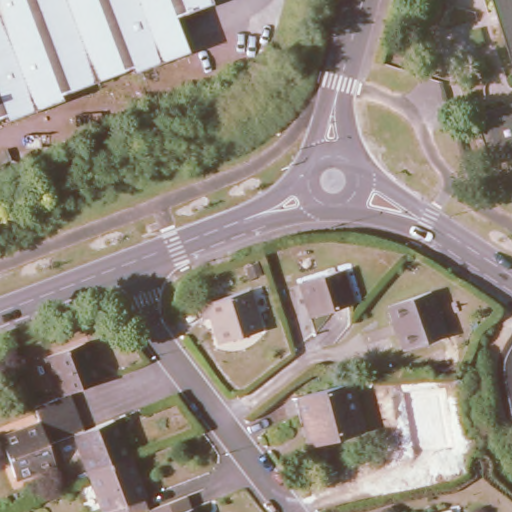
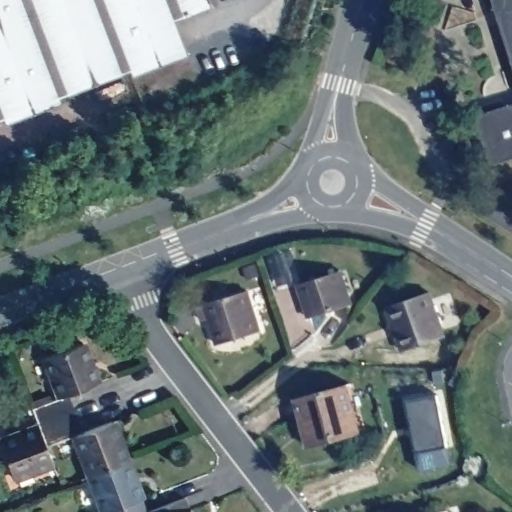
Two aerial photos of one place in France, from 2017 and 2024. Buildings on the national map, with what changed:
unchanged [(216,4),(181,17),(194,54),(138,75),(136,70),(65,95),(68,102),(9,123),(7,118),(0,121),(0,0),(214,0),(216,4)]
unchanged [(497,0),(512,0),(512,49),(497,0)]
unchanged [(478,111),(512,102),(512,160),(496,165),(478,111)]
unchanged [(345,267),(354,303),(311,315),(301,278),(345,267)]
unchanged [(206,319),(202,304),(253,290),(264,331),(221,342),(214,317),(206,319)]
unchanged [(431,290),(447,335),(402,351),(386,305),(431,290)]
unchanged [(44,353),(82,339),(97,378),(67,389),(72,403),(35,416),(30,403),(59,393),(44,353)]
unchanged [(310,441),(299,396),(348,382),(360,428),(361,433),(312,446),(310,441)]
new [(437,399),(449,451),(418,458),(406,406),(437,399)]
unchanged [(45,442),(52,462),(14,475),(0,437),(38,423),(35,416),(72,403),(77,416),(40,429),(45,442)]
unchanged [(77,416),(82,428),(112,417),(127,456),(89,470),(75,432),(45,442),(40,429),(77,416)]
unchanged [(136,512),(105,512),(89,470),(127,456),(147,508),(136,512)]
unchanged [(184,494),(188,506),(190,512),(148,512),(147,508),(184,494)]

